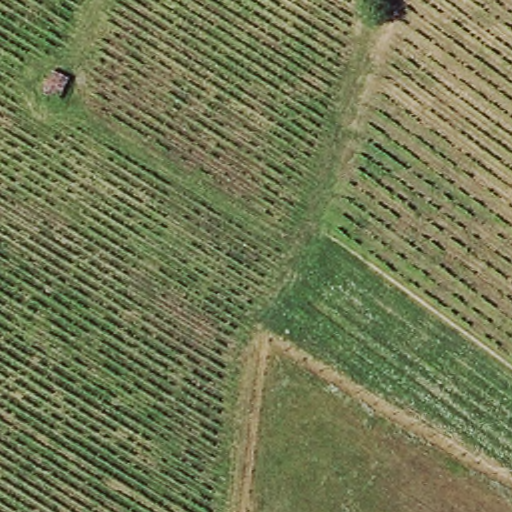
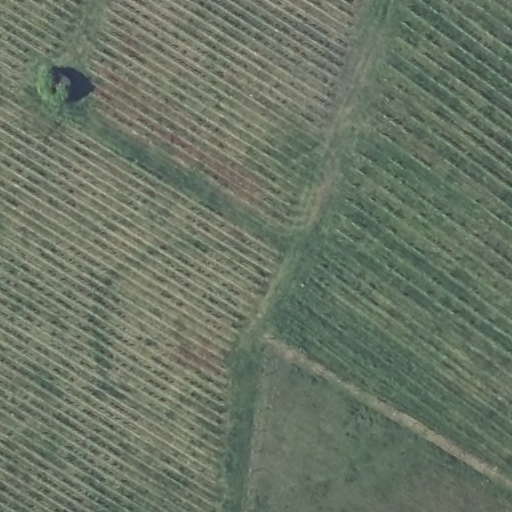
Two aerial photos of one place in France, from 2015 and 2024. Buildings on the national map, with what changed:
unchanged [(59,97),(45,85),(54,75),(70,86),(59,97)]

